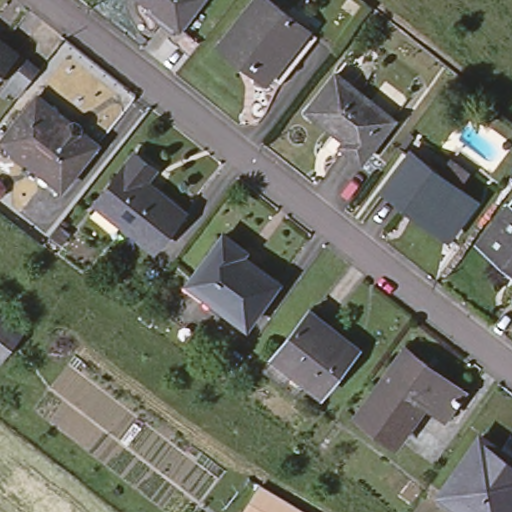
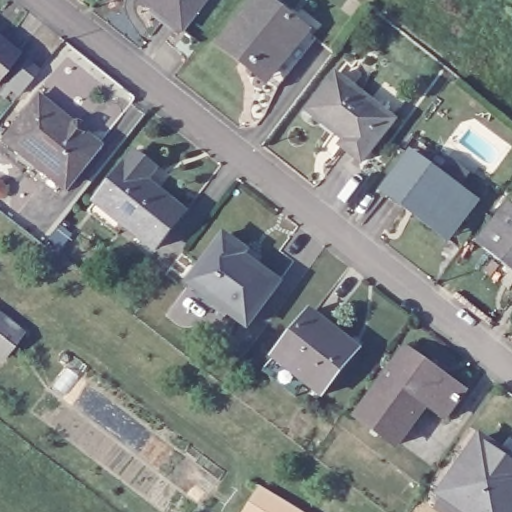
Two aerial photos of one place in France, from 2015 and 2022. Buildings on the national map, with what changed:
unchanged [(201,0),(179,27),(144,0),(201,0)]
unchanged [(253,0),(270,0),(306,29),(271,74),(246,55),(242,59),(220,42),(253,0)]
unchanged [(17,51),(0,72),(0,37),(17,51)]
unchanged [(25,57),(38,68),(18,92),(6,82),(25,57)]
unchanged [(336,72),(393,118),(361,159),(341,144),(344,138),(307,108),(336,72)]
unchanged [(1,138),(35,95),(69,121),(72,121),(75,123),(78,127),(81,130),(96,142),(61,185),(1,138)]
unchanged [(133,152),(151,168),(141,180),(178,212),(149,246),(92,199),(133,152)]
unchanged [(407,201),(403,205),(384,191),(412,153),(474,199),(449,232),(407,201)]
unchanged [(512,208),(512,268),(479,240),(508,205),(512,208)]
unchanged [(223,232),(243,249),(241,252),(278,281),(246,323),(188,280),(223,232)]
unchanged [(265,370),(276,355),(314,309),(361,347),(325,392),(309,380),(298,396),(265,370)]
unchanged [(1,355),(0,354),(0,318),(19,332),(3,353),(1,355)]
unchanged [(400,346),(421,361),(417,367),(455,393),(439,415),(418,400),(388,442),(350,416),(400,346)]
unchanged [(480,435),(499,448),(498,452),(512,462),(512,507),(508,512),(470,512),(439,492),(480,435)]
unchanged [(310,512),(239,512),(260,484),(310,512)]

